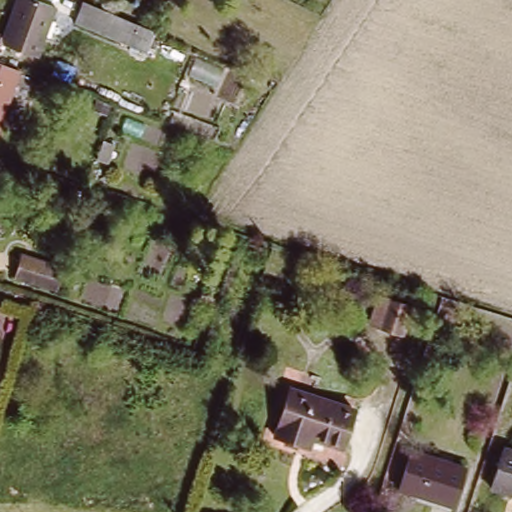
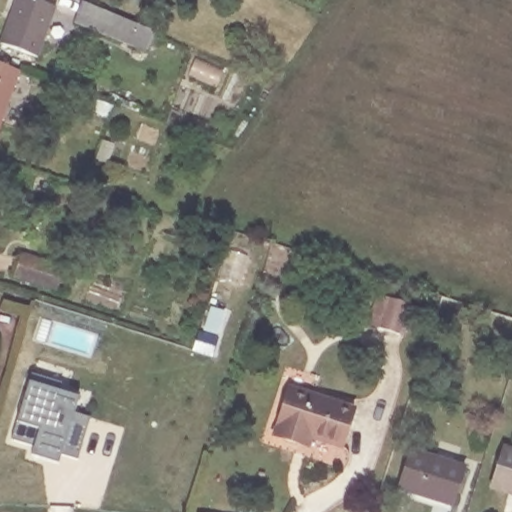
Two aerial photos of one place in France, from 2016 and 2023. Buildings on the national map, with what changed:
unchanged [(59,3),(41,53),(6,40),(20,0),(50,0),(59,3)]
unchanged [(154,30),(146,50),(76,21),(85,0),(154,30)]
unchanged [(23,68),(0,129),(0,59),(23,68)]
unchanged [(201,238),(207,248),(193,256),(187,245),(201,238)]
unchanged [(65,269),(58,291),(17,277),(24,255),(65,269)]
unchanged [(402,335),(373,325),(376,315),(383,295),(390,297),(412,304),(402,335)]
new [(16,423),(29,382),(32,375),(65,384),(62,392),(79,397),(74,416),(90,418),(77,461),(61,457),(58,465),(30,457),(32,450),(11,441),(16,423)]
unchanged [(277,435),(291,389),(317,397),(304,433),(301,443),(277,435)]
unchanged [(356,410),(344,446),(304,433),(317,397),(356,410)]
unchanged [(492,487),(506,449),(512,451),(512,493),(492,487)]
unchanged [(466,471),(455,506),(402,489),(414,454),(466,471)]

